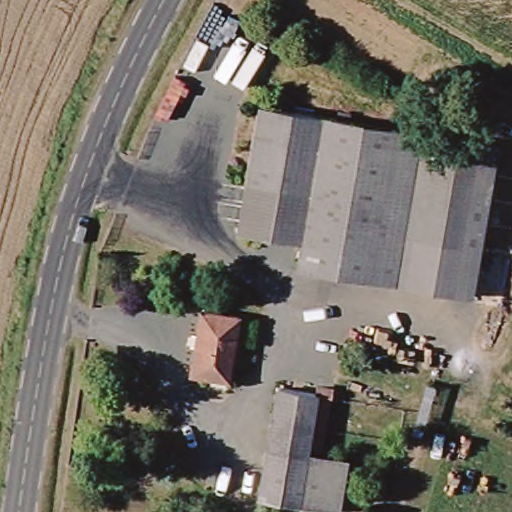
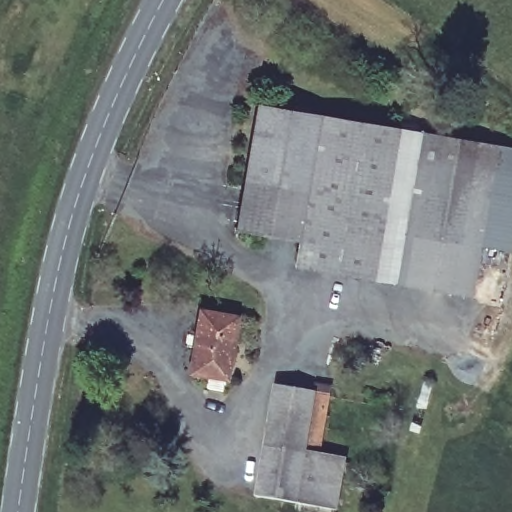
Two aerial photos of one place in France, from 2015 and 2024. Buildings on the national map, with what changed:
unchanged [(248,108),(493,143),(471,297),(297,270),(301,247),(230,237),(248,108)]
unchanged [(228,382),(192,376),(202,312),(238,318),(228,382)]
unchanged [(329,387),(320,456),(344,459),(336,512),(258,501),(275,390),(313,393),(314,385),(329,387)]

